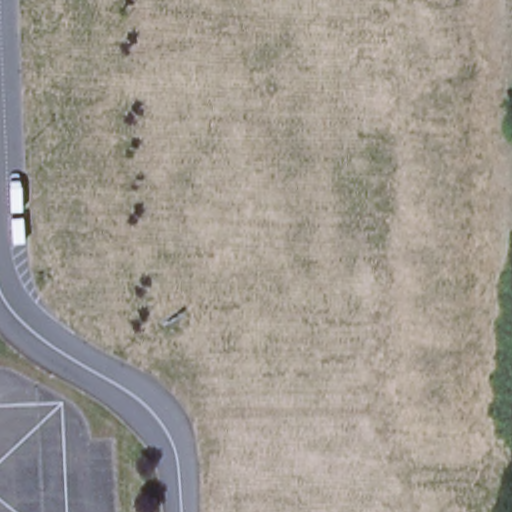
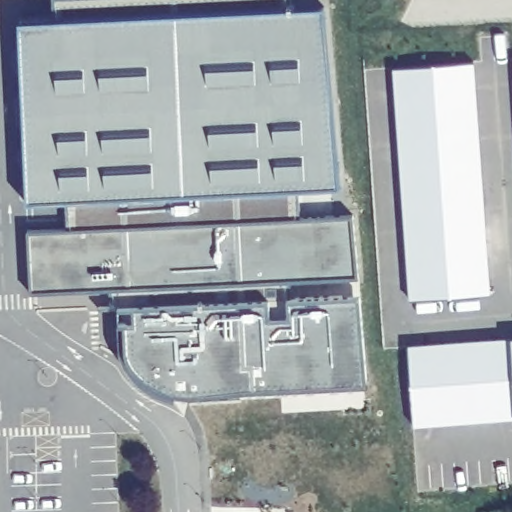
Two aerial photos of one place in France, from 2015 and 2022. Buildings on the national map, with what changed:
new [(53,20),(52,0),(291,0),(291,8),(53,20)]
new [(19,21),(53,20),(324,7),(340,189),(26,204),(20,49),(19,21)]
new [(490,295),(410,300),(394,67),(473,61),(490,295)]
new [(67,229),(65,202),(298,191),(300,218),(67,229)]
new [(30,294),(27,230),(353,216),(358,279),(30,294)]
new [(291,299),(132,307),(110,307),(110,290),(290,282),(291,299)]
new [(357,296),(364,388),(180,400),(152,394),(138,383),(125,369),(122,358),(122,329),(133,329),(132,307),(291,299),(357,296)]
new [(512,338),(512,418),(413,425),(407,345),(512,338)]

